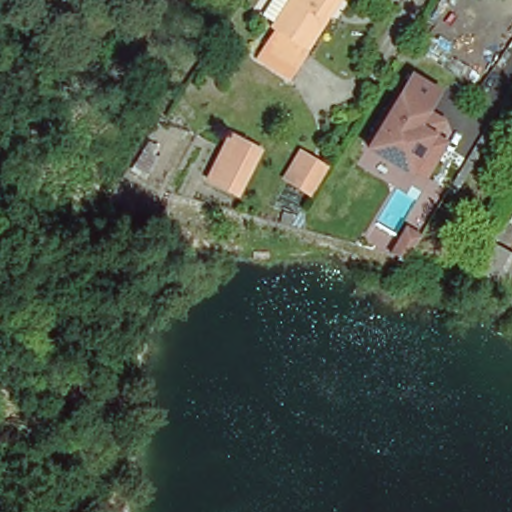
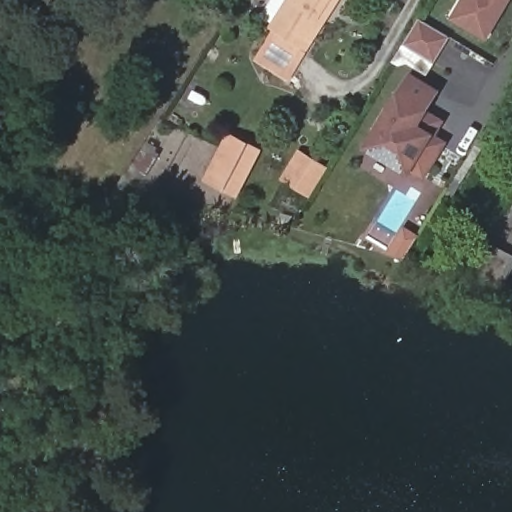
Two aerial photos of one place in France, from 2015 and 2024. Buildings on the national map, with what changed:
unchanged [(295,45),(283,64),(251,45),(283,0),(335,0),(321,22),(302,50),(295,45)]
new [(462,0),(506,0),(484,38),(451,19),(462,0)]
new [(434,62),(405,45),(420,18),(450,37),(434,62)]
unchanged [(431,111),(446,119),(436,136),(448,142),(427,180),(412,173),(368,147),(412,72),(442,89),(431,111)]
demolished [(445,184),(437,180),(477,115),(484,119),(445,184)]
unchanged [(453,193),(445,188),(485,124),(492,128),(453,193)]
unchanged [(239,200),(200,181),(224,133),(262,152),(239,200)]
unchanged [(308,201),(277,182),(297,150),(327,171),(308,201)]
unchanged [(512,259),(512,260),(500,280),(467,263),(480,241),(512,259)]

